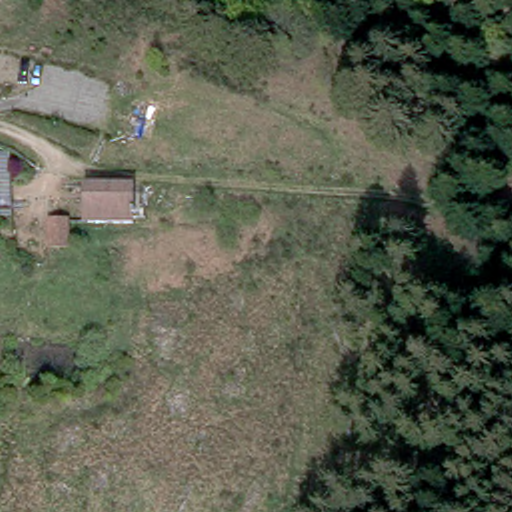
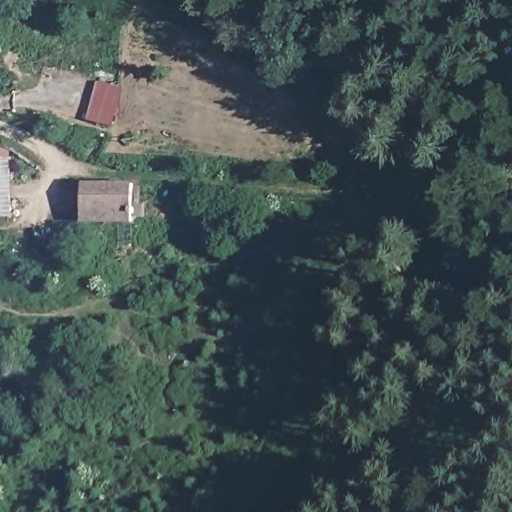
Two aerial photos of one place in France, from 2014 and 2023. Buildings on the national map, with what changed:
new [(123,87),(114,127),(89,121),(98,81),(123,87)]
unchanged [(86,174),(136,180),(134,198),(147,199),(146,213),(133,211),(132,217),(80,211),(86,174)]

